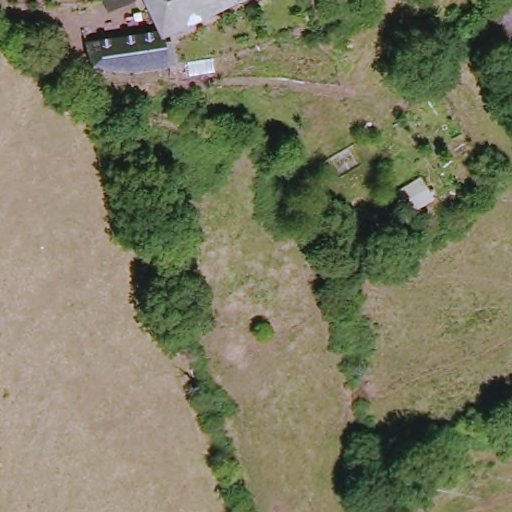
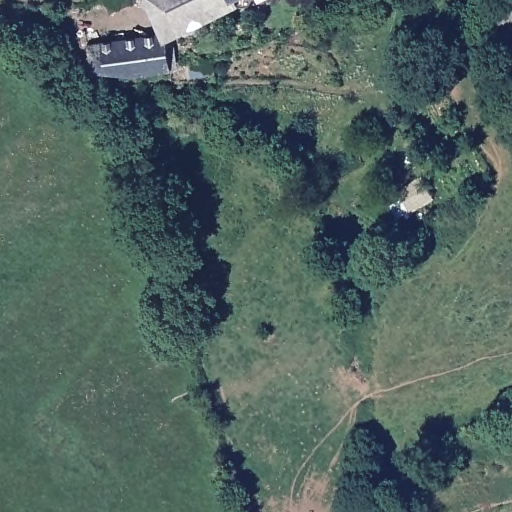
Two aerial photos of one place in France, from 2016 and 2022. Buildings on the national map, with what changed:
unchanged [(154,32),(141,0),(221,0),(155,35),(154,32)]
unchanged [(504,0),(512,0),(512,34),(502,46),(481,28),(504,0)]
unchanged [(0,18),(38,22),(35,37),(0,36),(0,18)]
unchanged [(155,35),(168,66),(118,74),(89,67),(81,42),(154,32),(155,35)]

